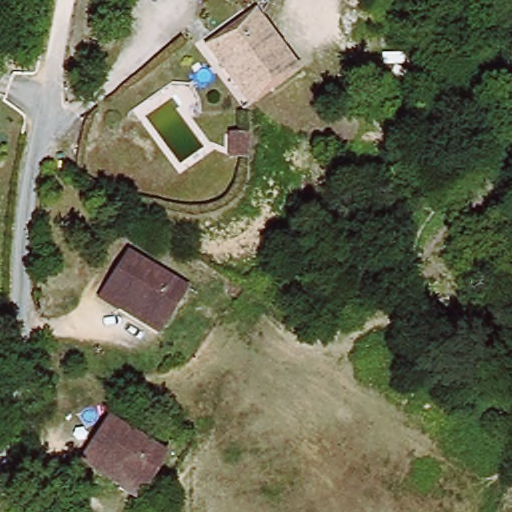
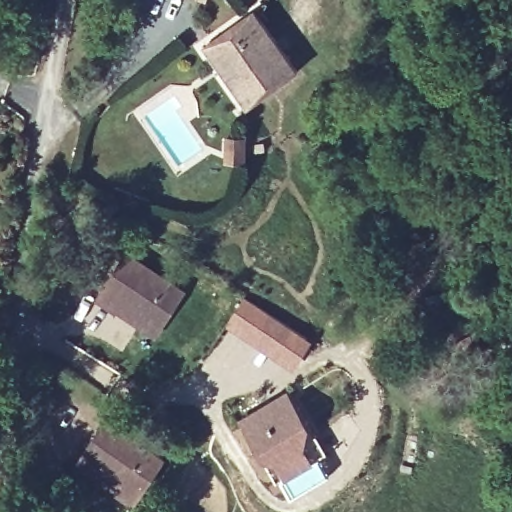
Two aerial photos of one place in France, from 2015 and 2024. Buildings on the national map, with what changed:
unchanged [(234,93),(203,50),(253,14),(299,71),(260,100),(247,110),(234,93)]
unchanged [(222,132),(245,132),(244,160),(222,160),(222,132)]
unchanged [(118,313),(100,303),(129,257),(185,292),(162,327),(156,337),(118,313)]
new [(239,300),(303,339),(287,365),(223,325),(239,300)]
new [(279,395),(313,457),(268,481),(234,418),(279,395)]
unchanged [(89,454),(110,422),(165,458),(138,500),(120,488),(82,464),(89,454)]

